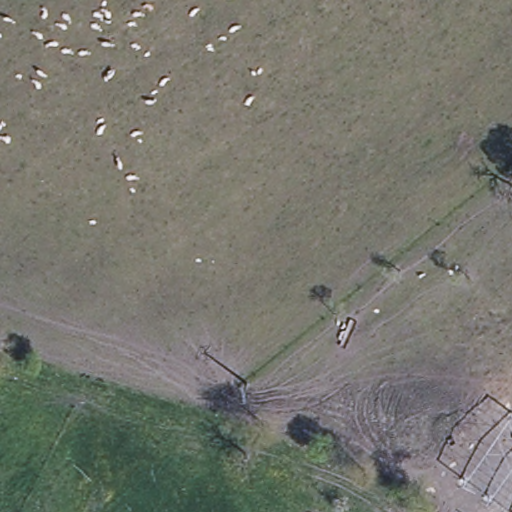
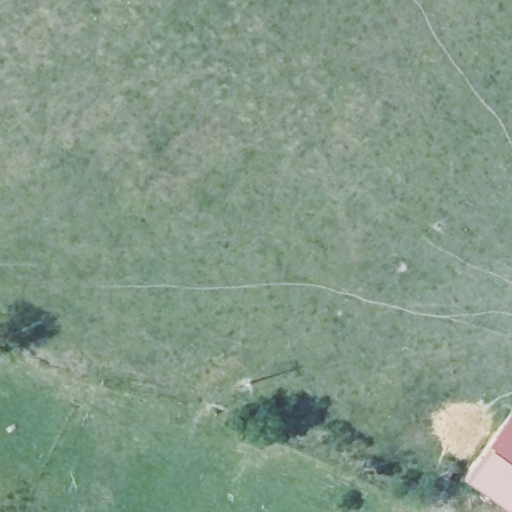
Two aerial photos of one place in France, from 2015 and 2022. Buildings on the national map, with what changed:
new [(512,414),(512,512),(508,512),(462,480),(511,413),(512,414)]

